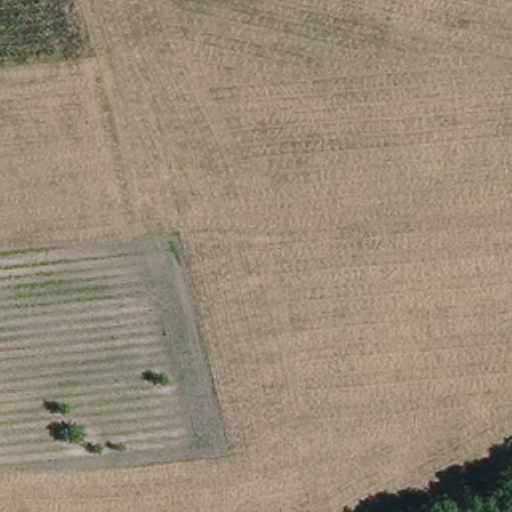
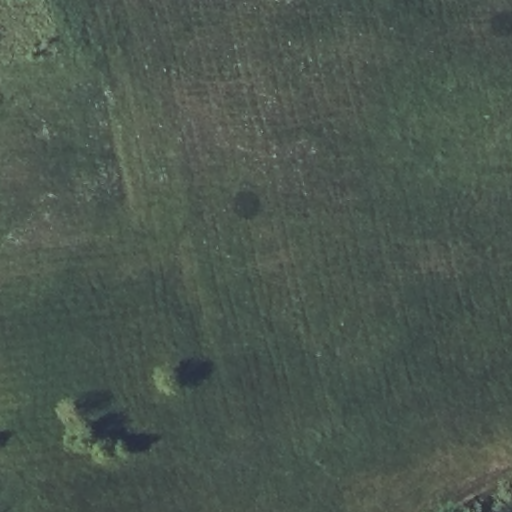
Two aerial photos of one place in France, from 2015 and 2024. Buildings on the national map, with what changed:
[]

